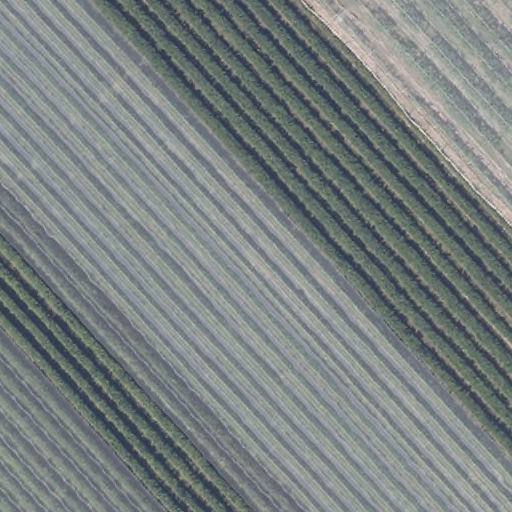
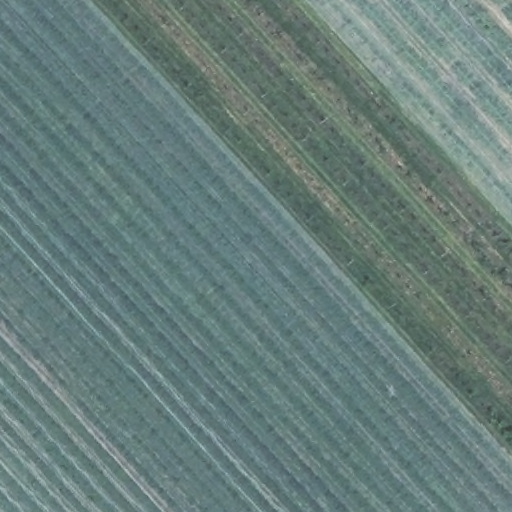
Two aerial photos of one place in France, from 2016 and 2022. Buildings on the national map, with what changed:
[]

